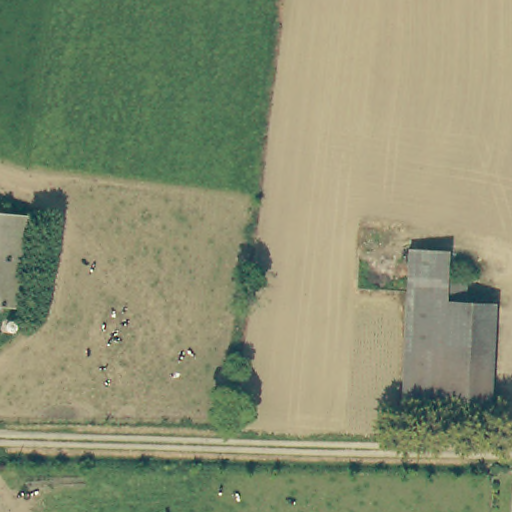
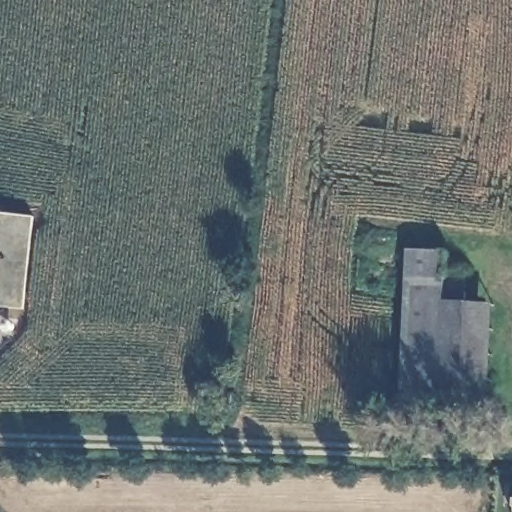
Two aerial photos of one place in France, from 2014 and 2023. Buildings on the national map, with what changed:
unchanged [(0,209),(32,212),(20,305),(0,303),(0,209)]
unchanged [(446,252),(446,277),(465,277),(463,303),(443,302),(438,402),(402,401),(408,251),(446,252)]
unchanged [(492,304),(489,403),(438,402),(443,302),(463,303),(492,304)]

